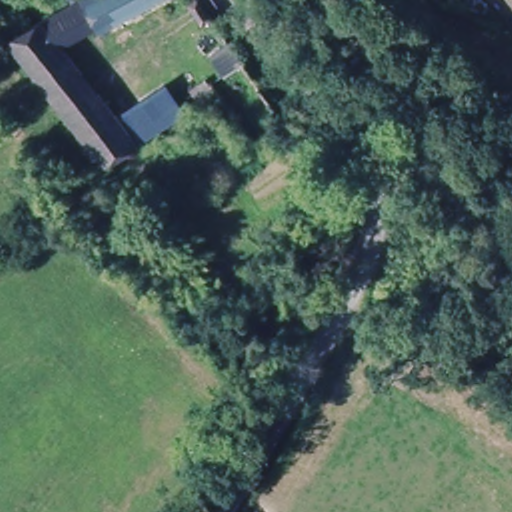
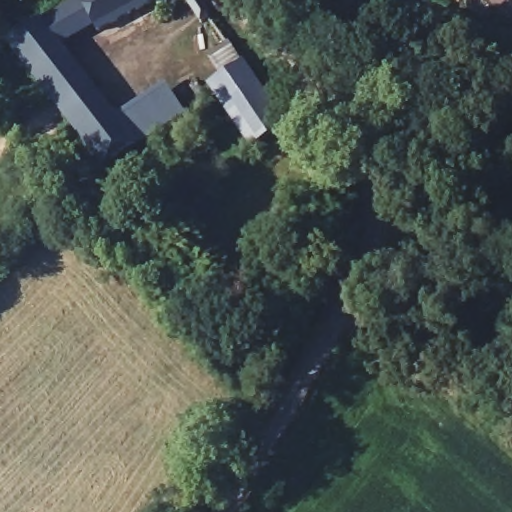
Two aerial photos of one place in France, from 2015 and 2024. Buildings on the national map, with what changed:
unchanged [(120,124),(172,93),(185,114),(132,147),(103,172),(5,48),(84,0),(161,0),(97,36),(92,28),(63,46),(120,124)]
new [(207,57),(225,46),(240,65),(284,123),(254,143),(210,86),(222,78),(207,57)]

